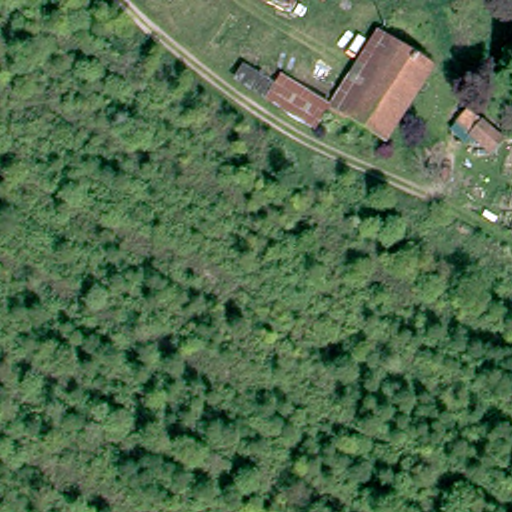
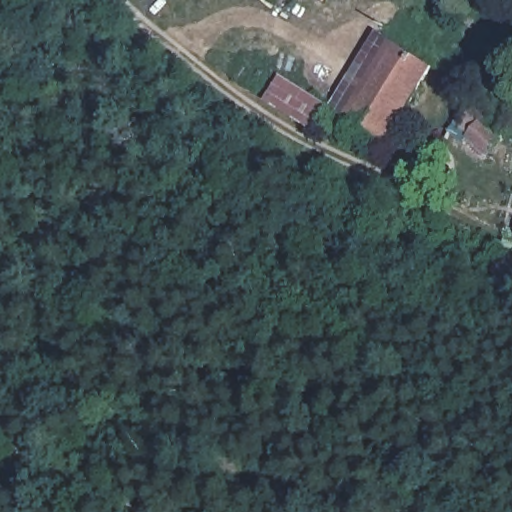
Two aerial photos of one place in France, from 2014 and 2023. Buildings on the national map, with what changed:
unchanged [(329,112),(378,38),(431,70),(382,145),(329,112)]
unchanged [(310,128),(234,71),(246,56),(322,114),(310,128)]
unchanged [(492,140),(484,155),(458,137),(467,124),(492,140)]

